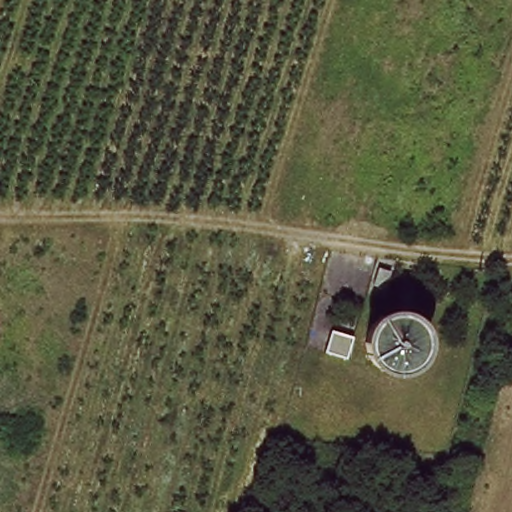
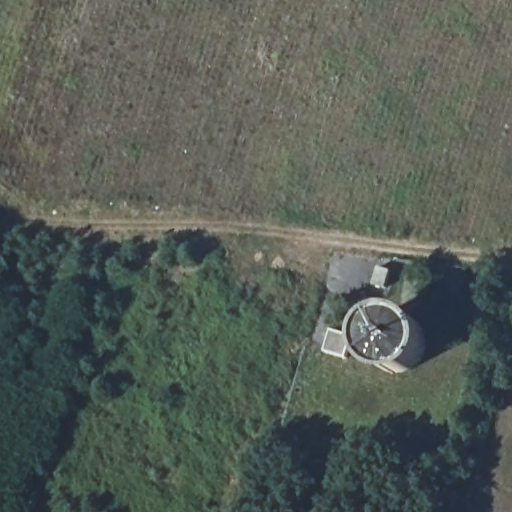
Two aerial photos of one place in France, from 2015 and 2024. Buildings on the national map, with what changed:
unchanged [(380,268),(391,272),(386,288),(375,284),(380,268)]
unchanged [(348,359),(326,353),(333,332),(354,338),(348,359)]

